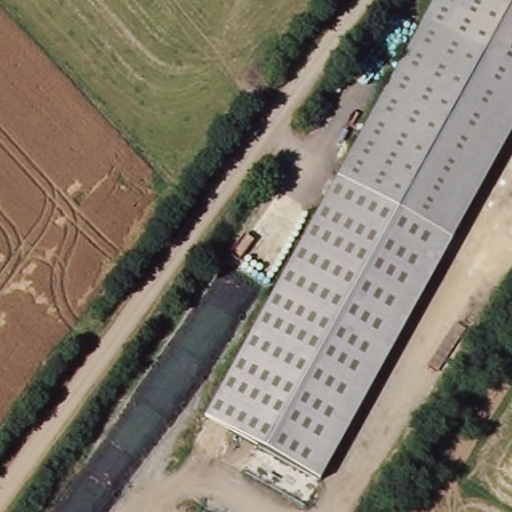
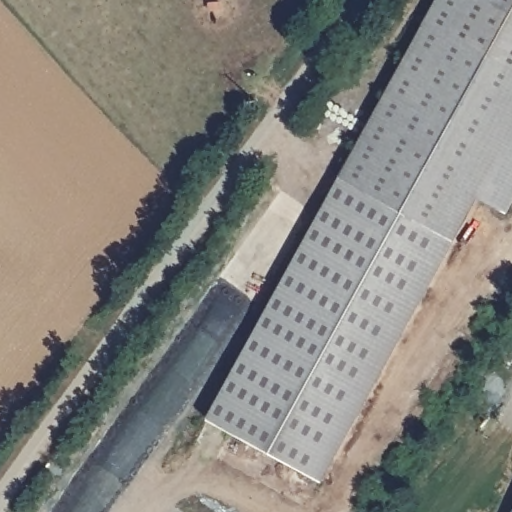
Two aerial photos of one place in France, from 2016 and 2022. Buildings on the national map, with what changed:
unchanged [(437,0),(512,0),(512,96),(502,114),(437,234),(339,181),(406,57),(437,0)]
unchanged [(512,96),(512,134),(318,483),(204,422),(339,181),(437,234),(502,114),(512,96)]
new [(512,134),(512,202),(506,213),(478,196),(512,134)]

